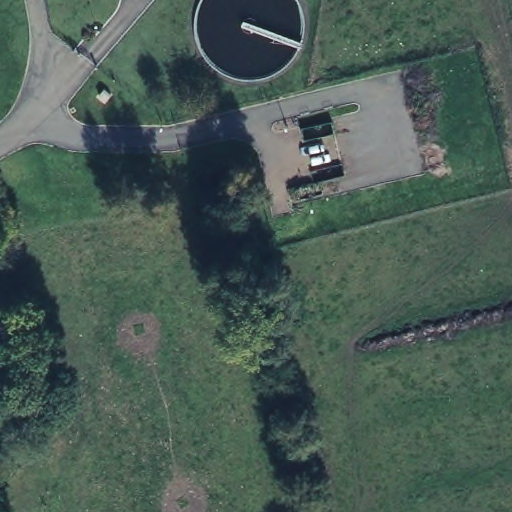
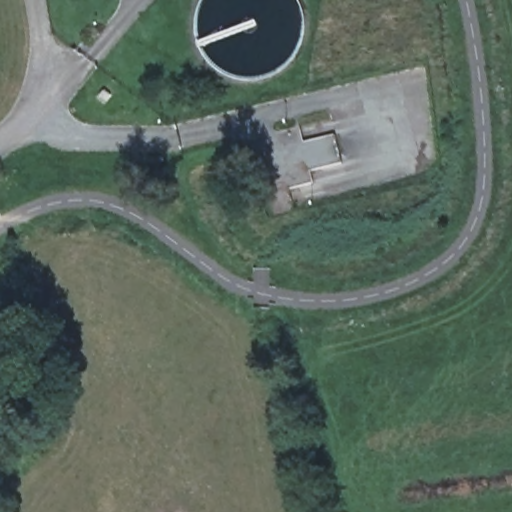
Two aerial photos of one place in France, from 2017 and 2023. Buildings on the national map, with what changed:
unchanged [(113,94),(107,105),(97,99),(104,88),(113,94)]

